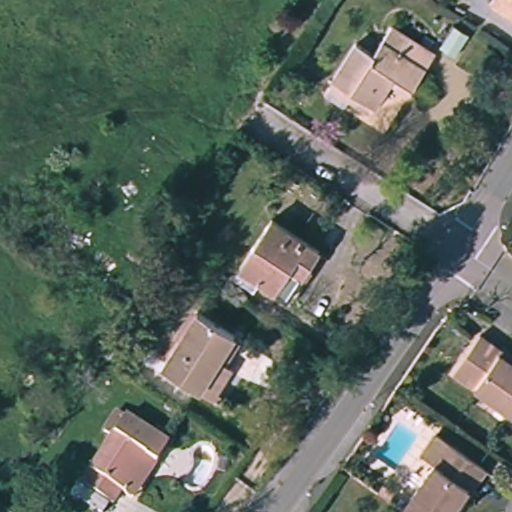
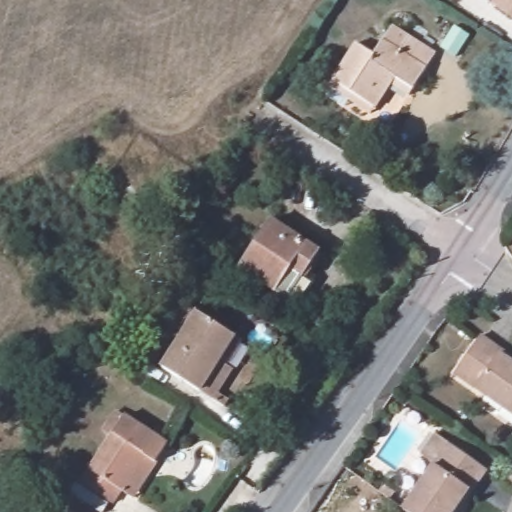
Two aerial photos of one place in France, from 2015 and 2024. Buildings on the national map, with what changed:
unchanged [(502,0),(512,0),(512,15),(498,6),(502,0)]
unchanged [(338,81),(362,45),(379,56),(397,27),(439,55),(412,96),(394,84),(378,107),(373,115),(333,89),(338,81)]
unchanged [(246,268),(277,221),(322,251),(291,298),(246,268)]
unchanged [(163,366),(197,311),(234,335),(200,390),(163,366)]
unchanged [(500,353),(512,361),(512,411),(454,372),(479,335),(501,350),(500,353)]
unchanged [(117,488),(108,502),(77,482),(121,415),(163,441),(128,495),(117,488)]
unchanged [(449,442),(487,468),(473,488),(469,486),(452,512),(408,512),(403,509),(449,442)]
unchanged [(512,469),(512,485),(504,480),(512,469)]

